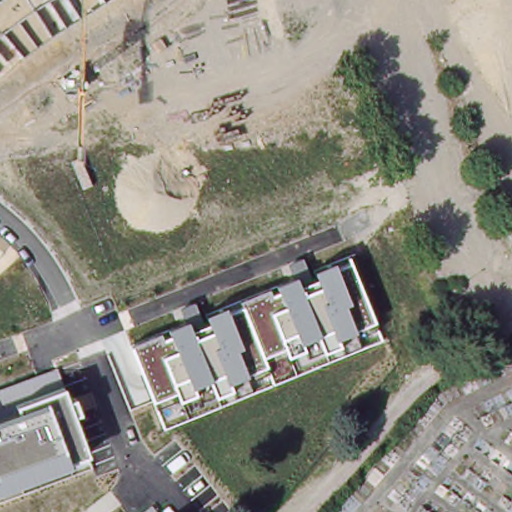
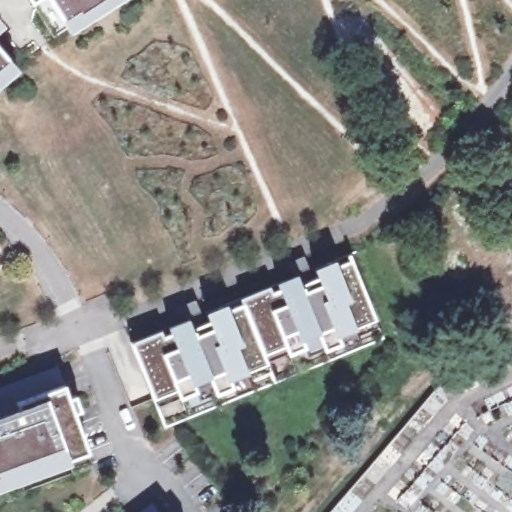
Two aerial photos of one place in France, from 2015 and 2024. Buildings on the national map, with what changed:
new [(28,0),(37,0),(30,3),(28,0)]
new [(67,31),(49,0),(116,0),(67,31)]
new [(0,29),(0,21),(4,26),(0,29)]
new [(0,86),(0,49),(18,71),(0,86)]
unchanged [(130,345),(186,322),(180,309),(194,302),(200,316),(292,278),(287,266),(302,259),(307,272),(350,255),(375,321),(382,340),(165,428),(130,345)]
unchanged [(64,386),(68,399),(75,397),(80,413),(75,415),(88,454),(0,489),(0,389),(57,368),(64,386)]
unchanged [(155,512),(140,512),(150,504),(155,512)]

